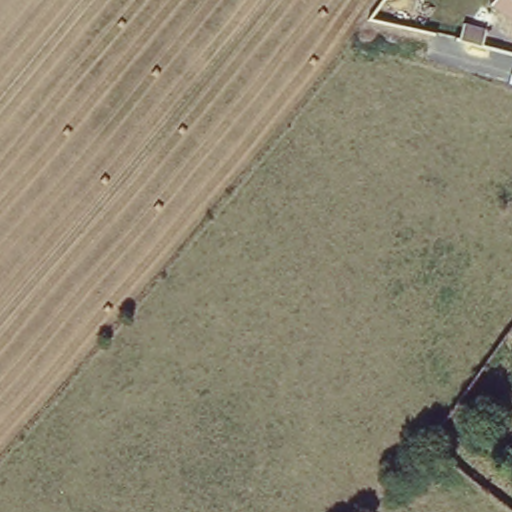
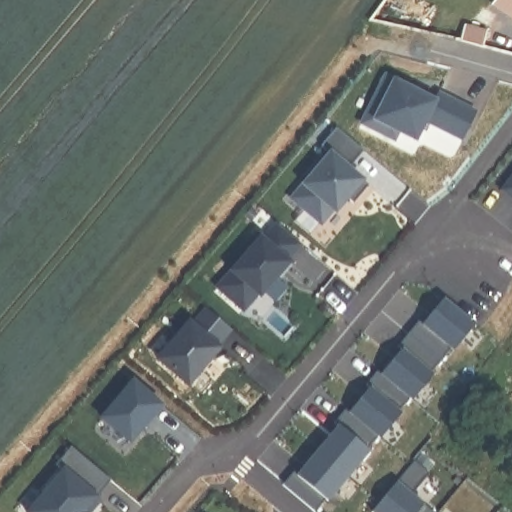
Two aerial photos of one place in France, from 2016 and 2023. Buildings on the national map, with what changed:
unchanged [(512,0),(512,19),(494,7),(499,0),(512,0)]
unchanged [(482,9),(499,20),(480,50),(475,58),(454,52),(459,44),(482,9)]
new [(440,102),(443,96),(476,112),(463,143),(428,128),(420,147),(398,135),(395,143),(361,126),(384,77),(440,102)]
new [(330,153),(322,147),(337,126),(366,151),(351,168),(369,184),(338,217),(332,213),(319,227),(291,201),(330,153)]
new [(512,199),(500,192),(512,176),(512,199)]
new [(299,242),(284,260),(288,265),(264,295),(258,290),(241,311),(216,290),(277,225),(299,242)]
new [(296,466),(300,470),(339,422),(334,419),(345,405),(350,409),(370,385),(366,381),(377,367),(381,371),(402,346),(398,342),(419,317),(423,320),(444,295),(475,320),(453,346),(451,344),(432,369),(434,370),(401,408),(399,406),(367,444),(369,447),(327,497),(326,495),(315,508),(284,481),(296,466)]
new [(203,306),(232,332),(186,390),(154,366),(203,306)]
new [(60,469),(51,463),(70,444),(110,480),(97,493),(102,498),(91,512),(25,512),(60,469)]
new [(413,490),(436,511),(435,512),(376,512),(372,509),(414,457),(430,469),(413,490)]

